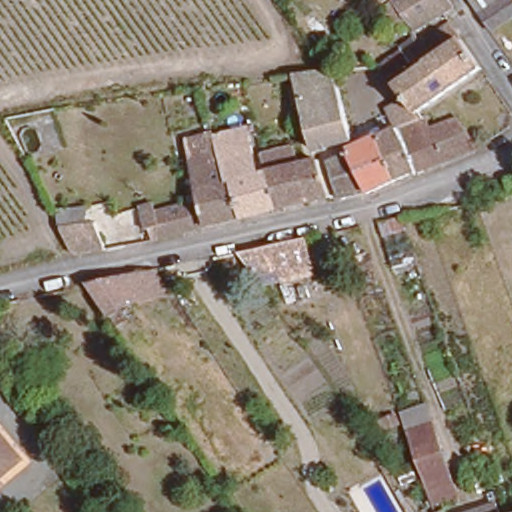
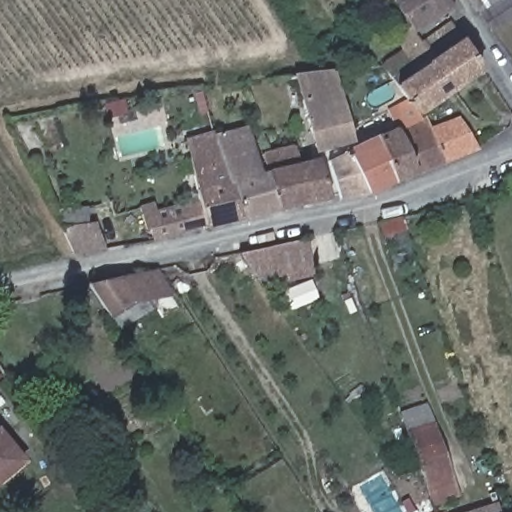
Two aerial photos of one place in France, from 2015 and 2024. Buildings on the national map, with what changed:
unchanged [(380,4),(377,0),(386,0),(380,4)]
unchanged [(388,11),(387,9),(397,3),(401,0),(449,0),(455,9),(447,14),(417,34),(411,25),(401,32),(388,11)]
unchanged [(478,10),(471,0),(512,0),(512,19),(493,31),(478,10)]
unchanged [(396,137),(385,115),(415,105),(385,63),(402,52),(405,50),(411,55),(415,54),(421,49),(457,25),(485,67),(421,112),(427,126),(428,125),(443,160),(399,178),(383,144),(396,137)]
unchanged [(355,143),(317,147),(297,72),(322,70),(335,69),(337,77),(355,143)]
unchanged [(428,125),(433,125),(443,124),(460,115),(479,147),(443,160),(428,125)]
unchanged [(24,130),(10,132),(9,122),(21,120),(24,130)]
unchanged [(244,216),(231,159),(228,158),(226,157),(221,135),(236,132),(238,137),(252,135),(265,178),(271,176),(279,207),(244,216)]
unchanged [(226,220),(210,155),(207,139),(221,135),(226,157),(228,158),(231,159),(244,216),(226,220)]
unchanged [(370,189),(356,152),(358,152),(383,144),(399,178),(370,189)]
unchanged [(332,194),(310,200),(279,207),(271,176),(265,152),(300,145),(304,165),(322,160),(332,194)]
unchanged [(370,189),(340,196),(338,192),(330,161),(356,152),(370,189)]
unchanged [(154,229),(150,229),(147,217),(177,211),(202,205),(192,159),(210,155),(226,220),(182,232),(156,239),(154,229)]
unchanged [(505,176),(512,175),(512,191),(507,192),(505,176)]
unchanged [(100,245),(71,250),(68,232),(96,228),(100,245)]
unchanged [(147,240),(135,244),(132,231),(144,229),(147,240)]
unchanged [(309,264),(257,276),(241,254),(303,240),(309,264)]
unchanged [(90,285),(142,275),(159,271),(170,289),(154,293),(113,318),(90,285)]
unchanged [(450,470),(423,481),(421,475),(415,459),(396,410),(422,401),(450,470)]
unchanged [(25,459),(0,479),(0,429),(1,428),(25,459)]
unchanged [(440,505),(443,511),(495,490),(502,507),(502,508),(504,512),(435,512),(433,507),(440,505)]
unchanged [(512,504),(512,512),(504,512),(502,508),(502,507),(506,505),(512,504)]

